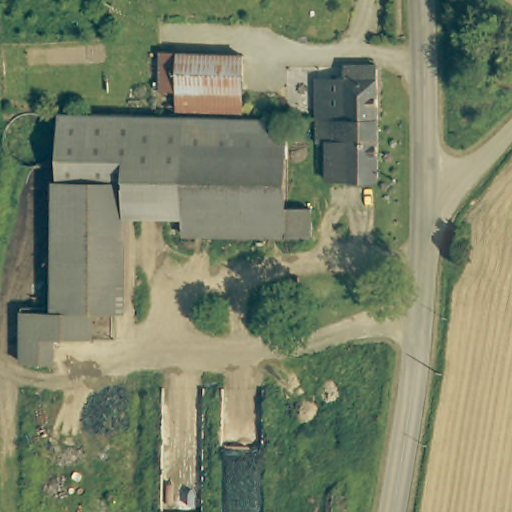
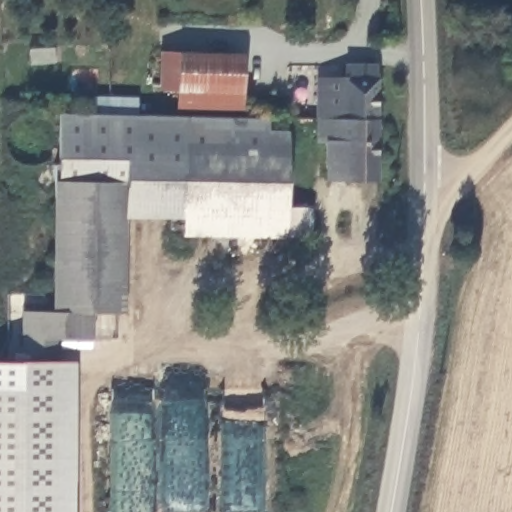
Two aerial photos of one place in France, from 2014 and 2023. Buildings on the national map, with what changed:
unchanged [(163,53),(247,56),(245,118),(183,116),(183,96),(161,94),(163,53)]
unchanged [(319,121),(318,79),(346,79),(347,66),(376,67),(377,122),(319,121)]
unchanged [(63,121),(278,125),(278,136),(297,136),(294,211),(192,204),(117,199),(119,180),(60,177),(63,121)]
unchanged [(377,122),(378,180),(334,181),(335,144),(319,144),(319,121),(377,122)]
unchanged [(110,311),(53,307),(60,177),(119,180),(117,199),(110,311)]
unchanged [(316,213),(315,239),(189,234),(192,204),(294,211),(316,213)]
new [(76,512),(0,512),(0,387),(18,387),(17,362),(18,353),(23,307),(90,312),(88,338),(54,335),(52,365),(52,359),(78,359),(76,512)]
demolished [(23,307),(90,312),(88,338),(54,335),(52,365),(41,364),(42,356),(18,353),(23,307)]

